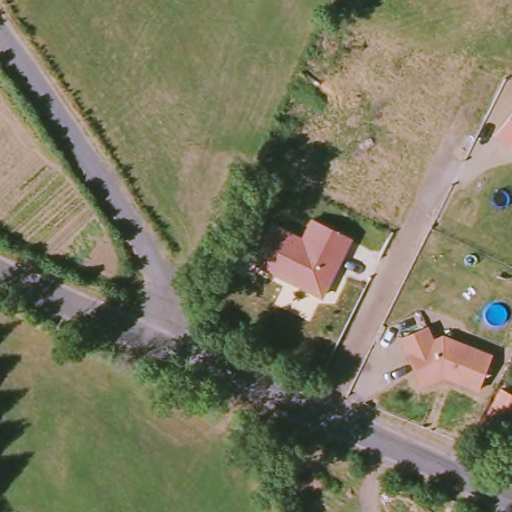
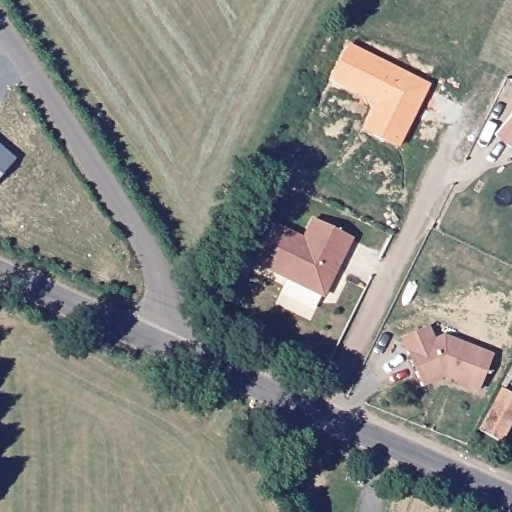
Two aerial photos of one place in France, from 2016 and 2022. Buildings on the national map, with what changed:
new [(399,151),(360,132),(372,104),(326,85),(348,36),(433,83),(399,151)]
unchanged [(510,146),(495,135),(512,116),(512,145),(510,146)]
unchanged [(322,296),(255,263),(274,225),(303,240),(313,220),(351,239),(322,296)]
unchanged [(427,326),(435,340),(440,337),(458,344),(460,340),(493,354),(480,388),(445,375),(423,387),(402,339),(427,326)]
unchanged [(512,411),(512,421),(500,441),(480,430),(495,402),(512,411)]

